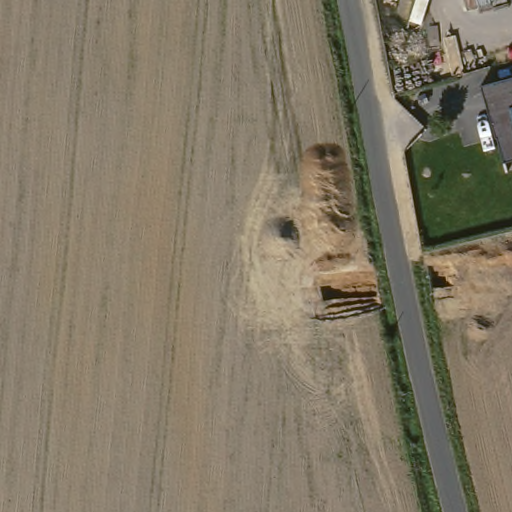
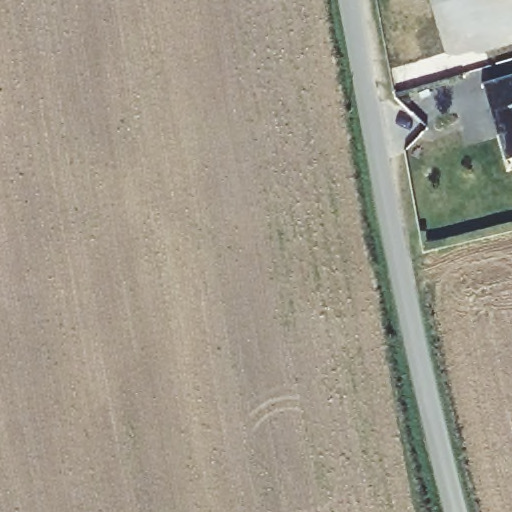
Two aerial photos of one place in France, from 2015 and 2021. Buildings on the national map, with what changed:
unchanged [(512,75),(512,158),(504,161),(482,84),(512,75)]

